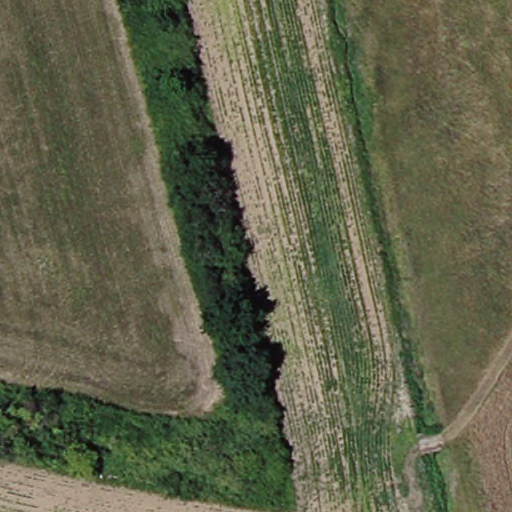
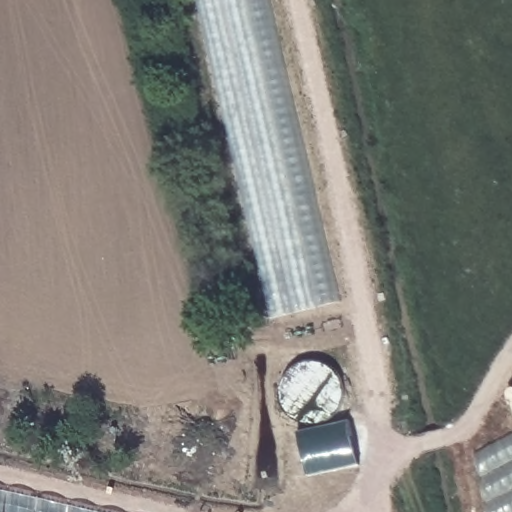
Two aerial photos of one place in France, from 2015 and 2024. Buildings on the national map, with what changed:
new [(272,0),(342,301),(272,318),(197,0),(272,0)]
new [(298,433),(348,421),(360,465),(309,477),(298,433)]
new [(512,433),(512,512),(488,512),(476,452),(512,433)]
new [(0,489),(99,512),(0,512),(0,489)]

